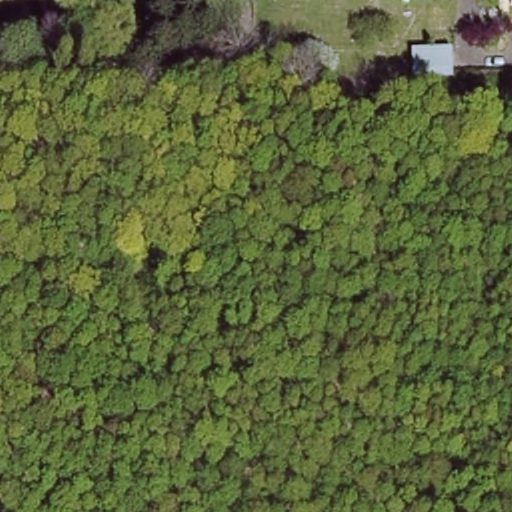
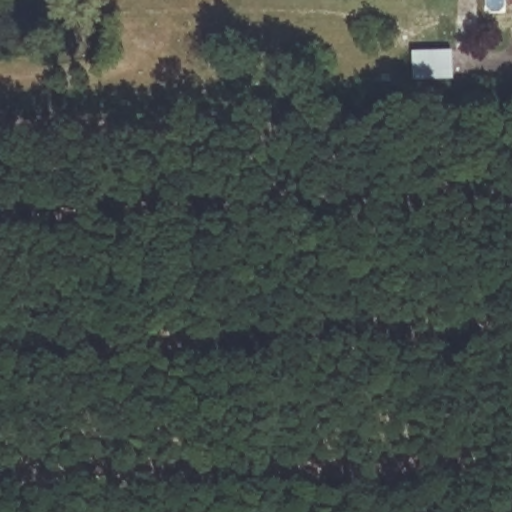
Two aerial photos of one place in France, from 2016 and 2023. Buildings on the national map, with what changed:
unchanged [(512,0),(512,9),(509,10),(509,0),(512,0)]
unchanged [(229,32),(230,48),(211,49),(211,32),(229,32)]
unchanged [(414,80),(414,51),(452,50),(454,79),(414,80)]

